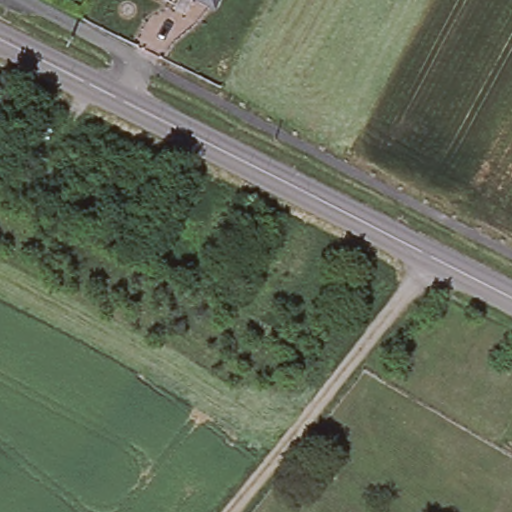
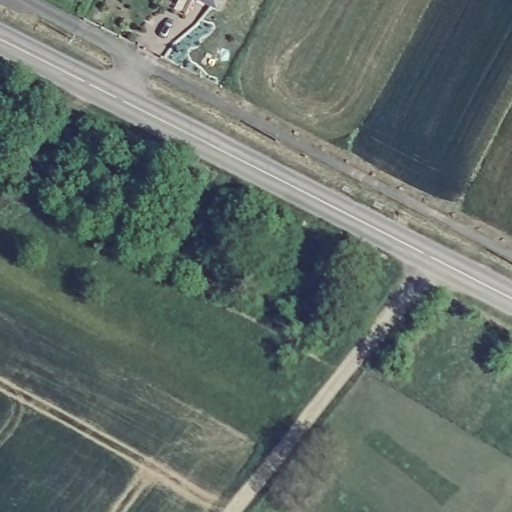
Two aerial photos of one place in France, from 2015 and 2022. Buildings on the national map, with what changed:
unchanged [(216,5),(206,0),(218,0),(216,5)]

